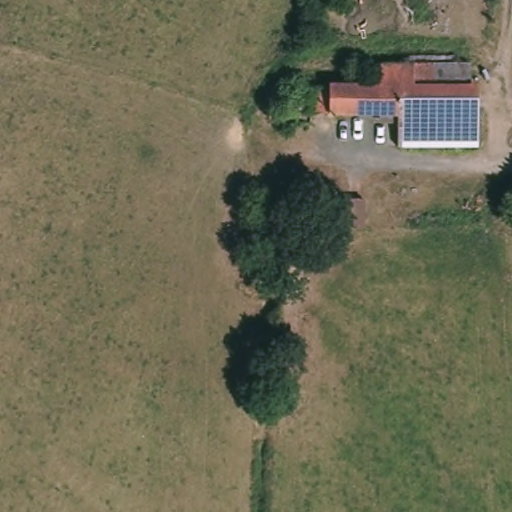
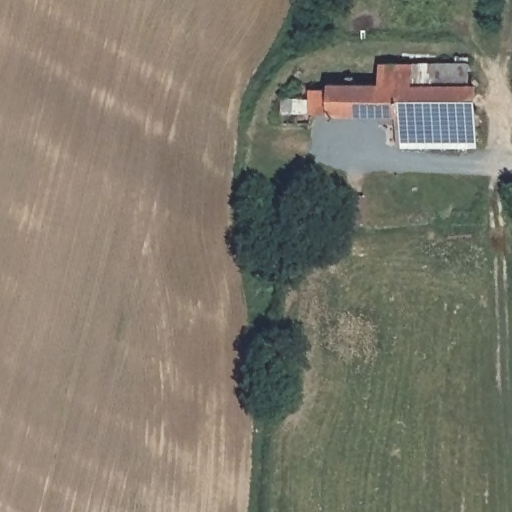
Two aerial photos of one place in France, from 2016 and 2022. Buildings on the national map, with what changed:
unchanged [(471,61),(473,149),(397,150),(396,114),(395,83),(382,84),(382,64),(435,63),(471,61)]
unchanged [(289,115),(289,99),(299,99),(299,87),(316,86),(316,78),(337,77),(337,86),(382,84),(395,83),(396,114),(289,115)]
unchanged [(349,230),(349,225),(350,203),(368,204),(367,225),(367,231),(349,230)]

